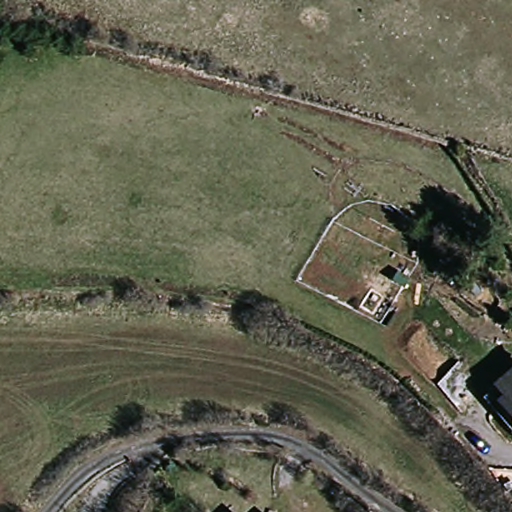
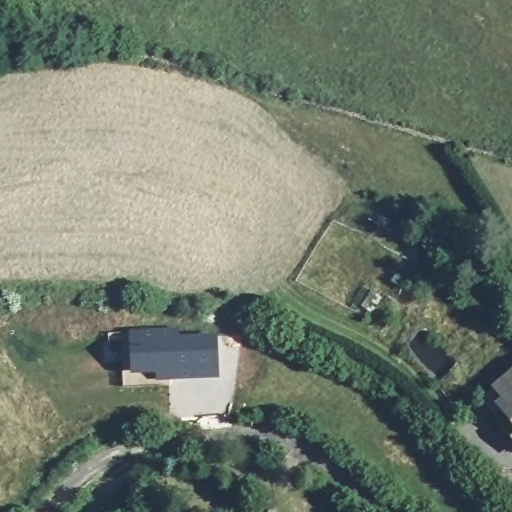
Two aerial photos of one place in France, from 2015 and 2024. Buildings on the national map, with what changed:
new [(157,381),(156,373),(130,375),(128,330),(180,327),(179,335),(217,333),(219,378),(157,381)]
unchanged [(512,420),(497,402),(503,397),(493,385),(512,371),(512,420)]

